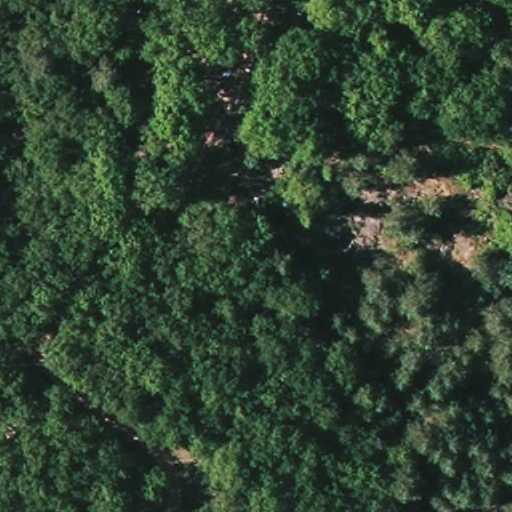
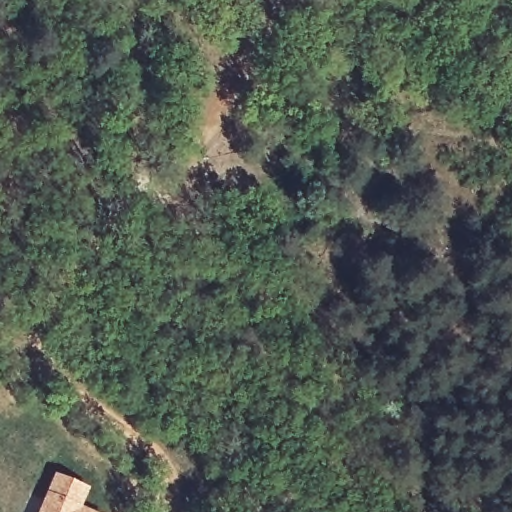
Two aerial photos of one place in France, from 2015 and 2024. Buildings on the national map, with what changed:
new [(53,472),(90,486),(82,505),(98,512),(36,512),(53,472)]

